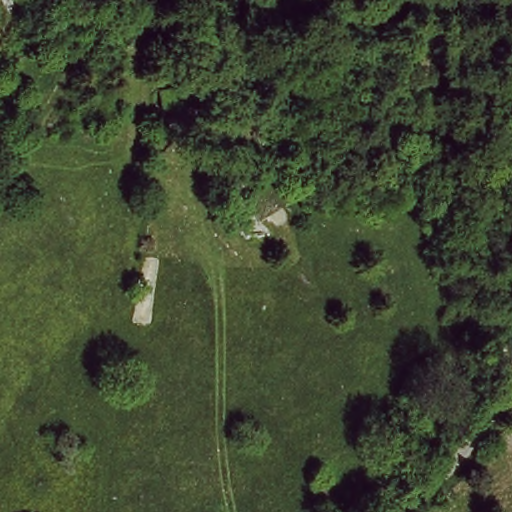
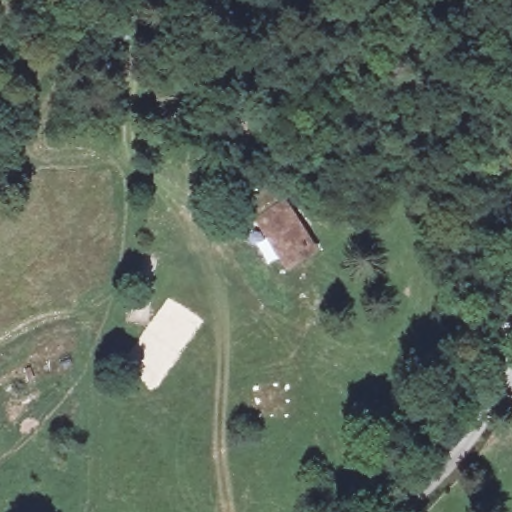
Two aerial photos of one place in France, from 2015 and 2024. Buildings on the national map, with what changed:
new [(285,198),(319,250),(286,270),(254,218),(285,198)]

